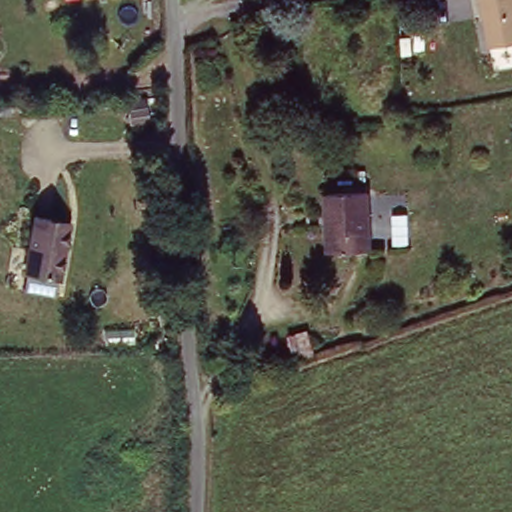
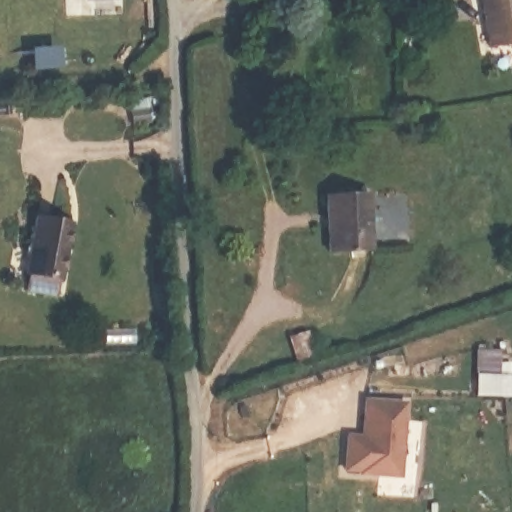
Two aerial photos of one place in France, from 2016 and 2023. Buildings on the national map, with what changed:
unchanged [(487,49),(480,0),(512,0),(512,43),(487,49)]
unchanged [(372,192),(374,249),(334,253),(331,195),(372,192)]
unchanged [(71,221),(60,283),(25,277),(37,216),(71,221)]
new [(498,350),(498,377),(512,377),(512,399),(476,398),(476,351),(498,350)]
new [(347,437),(362,438),(365,402),(405,404),(401,476),(361,473),(361,471),(346,470),(347,437)]

